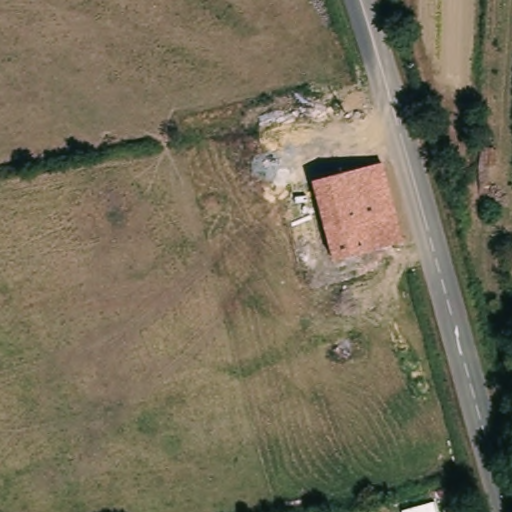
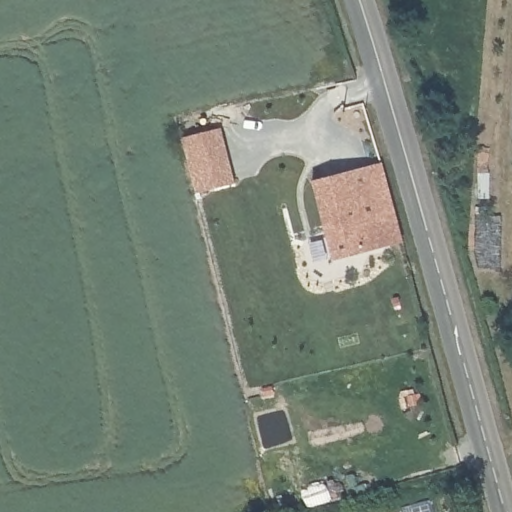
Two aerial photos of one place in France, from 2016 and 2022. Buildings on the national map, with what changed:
new [(235,183),(195,192),(181,138),(220,127),(235,183)]
unchanged [(315,200),(310,183),(386,163),(406,239),(331,256),(315,200)]

